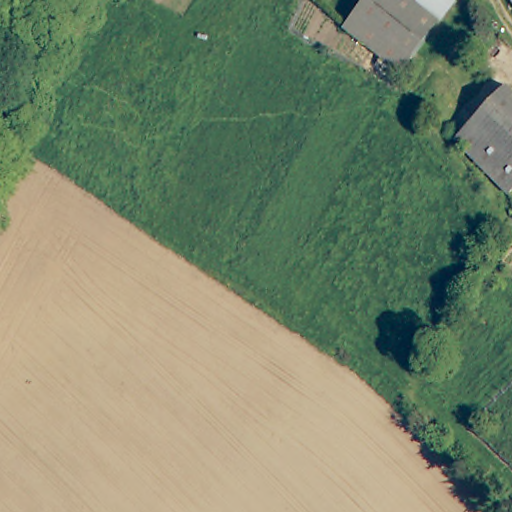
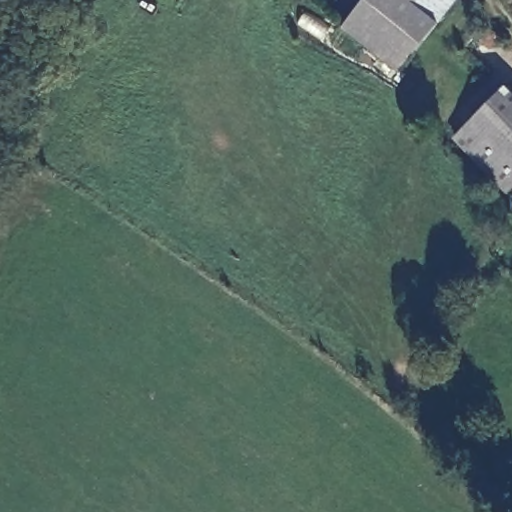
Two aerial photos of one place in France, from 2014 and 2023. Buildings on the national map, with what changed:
unchanged [(399,72),(345,30),(369,0),(415,0),(442,22),(399,72)]
unchanged [(442,22),(415,0),(461,0),(442,22)]
unchanged [(512,1),(511,0),(512,0),(512,1)]
unchanged [(504,191),(449,137),(505,84),(512,91),(512,188),(508,185),(504,191)]

